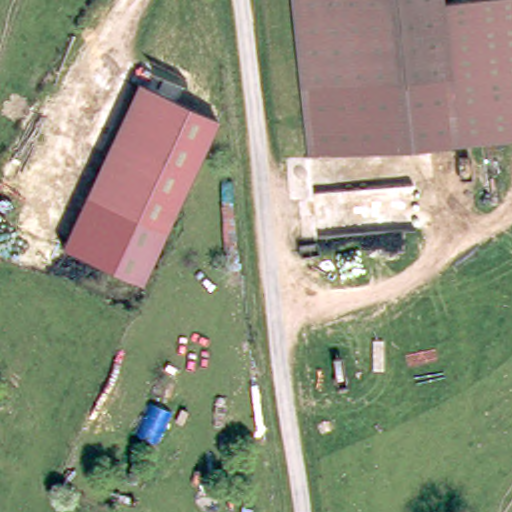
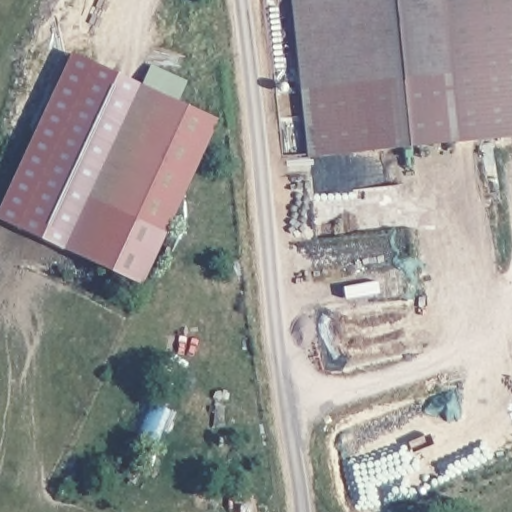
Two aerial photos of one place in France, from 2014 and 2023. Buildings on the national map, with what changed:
unchanged [(305,157),(288,0),(512,0),(512,132),(305,157)]
new [(0,220),(0,207),(73,52),(150,96),(79,261),(0,220)]
unchanged [(136,288),(79,261),(150,96),(175,108),(127,217),(160,231),(161,231),(136,288)]
unchanged [(127,217),(175,108),(210,125),(160,231),(127,217)]

